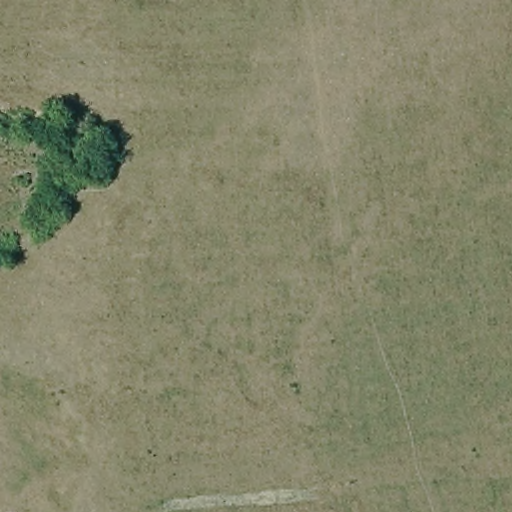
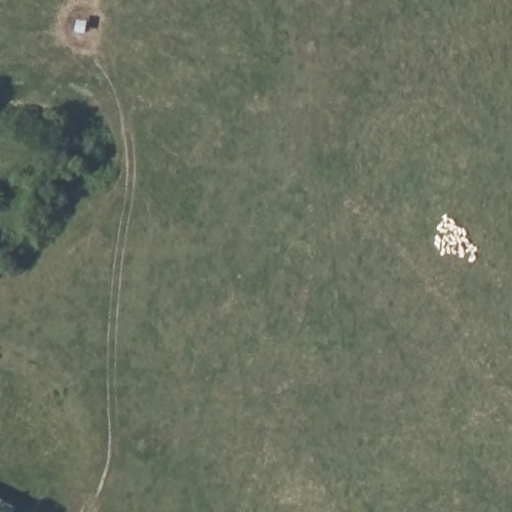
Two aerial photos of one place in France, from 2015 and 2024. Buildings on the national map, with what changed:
[]

